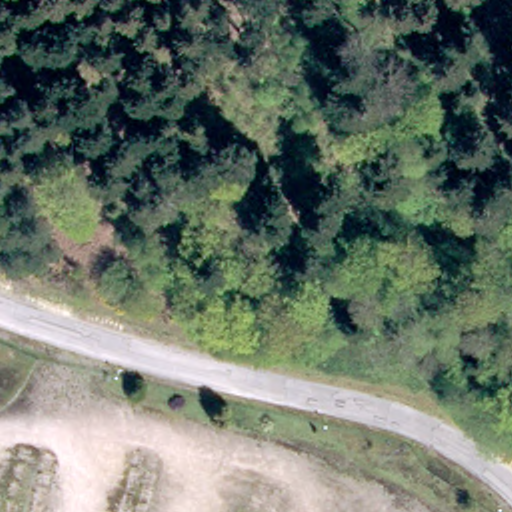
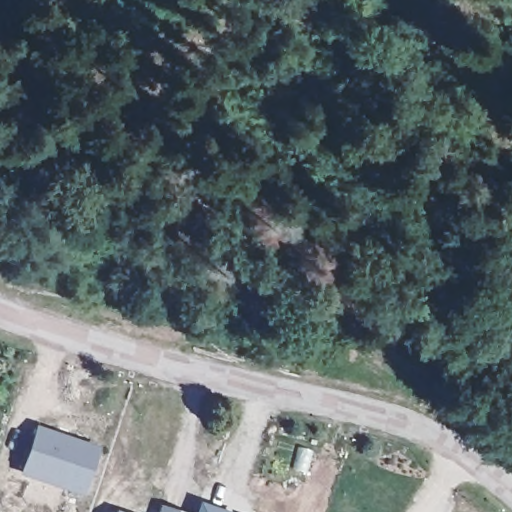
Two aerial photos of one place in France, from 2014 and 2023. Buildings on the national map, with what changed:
new [(36,427),(95,446),(80,490),(21,470),(36,427)]
new [(161,502),(190,512),(158,512),(161,502)]
new [(123,512),(114,512),(114,509),(123,512)]

